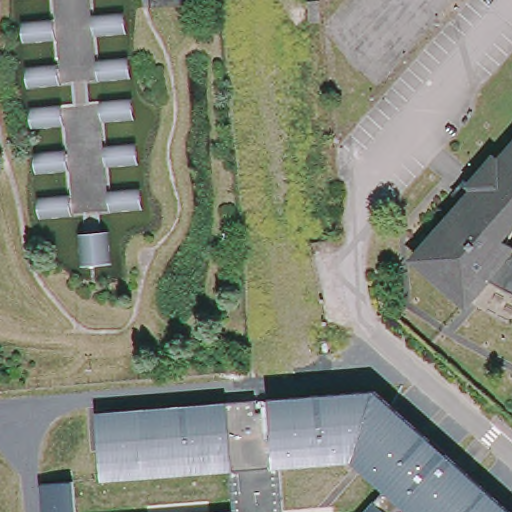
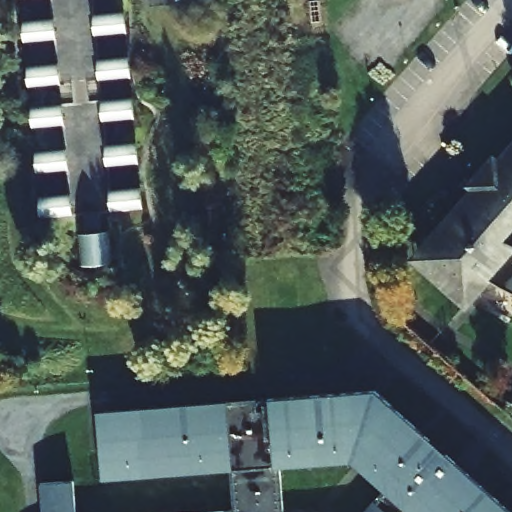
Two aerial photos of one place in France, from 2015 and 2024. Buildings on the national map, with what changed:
unchanged [(126,34),(95,35),(93,15),(124,12),(126,34)]
unchanged [(57,40),(25,43),(24,21),(55,19),(57,40)]
unchanged [(130,79),(99,81),(97,60),(129,57),(130,79)]
unchanged [(61,85),(30,88),(27,66),(59,64),(61,85)]
unchanged [(135,119),(102,122),(101,100),(132,97),(135,119)]
unchanged [(64,126),(33,128),(32,107),(62,104),(64,126)]
unchanged [(139,164),(107,167),(105,145),(136,142),(139,164)]
unchanged [(69,170),(38,174),(35,152),(67,149),(69,170)]
unchanged [(480,291),(428,245),(512,150),(512,283),(499,271),(480,291)]
unchanged [(142,209),(110,212),(109,190),(140,187),(142,209)]
unchanged [(73,215),(42,219),(40,197),(71,195),(73,215)]
unchanged [(113,263),(81,265),(78,234),(110,231),(113,263)]
unchanged [(512,512),(410,512),(381,486),(352,461),(280,466),(230,470),(100,480),(97,413),(374,391),(512,512)]
unchanged [(234,510),(230,470),(280,466),(284,512),(218,512),(234,510)]
unchanged [(74,482),(76,512),(43,512),(40,484),(74,482)]
unchanged [(381,486),(410,512),(357,512),(381,486)]

